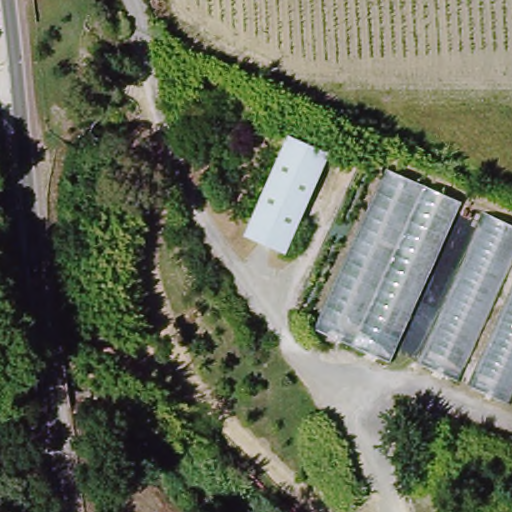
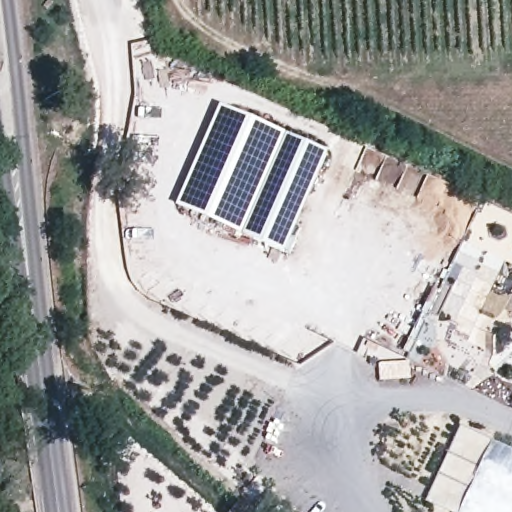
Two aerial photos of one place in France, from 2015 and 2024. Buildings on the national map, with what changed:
new [(304,147),(287,140),(245,234),(178,205),(222,105),(330,153),(327,157),(304,147)]
unchanged [(287,140),(327,157),(287,252),(245,234),(287,140)]
demolished [(388,170),(512,226),(512,403),(394,355),(390,362),(312,328),(388,170)]
new [(449,512),(427,502),(462,427),(494,442),(462,512),(449,512)]
new [(462,512),(494,442),(512,451),(512,512),(462,512)]

